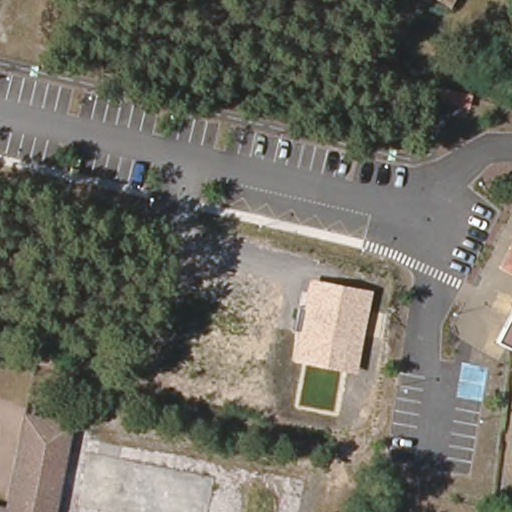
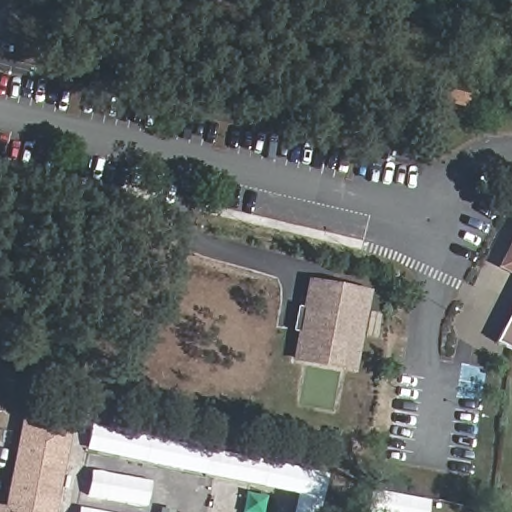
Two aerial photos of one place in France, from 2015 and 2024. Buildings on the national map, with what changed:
unchanged [(437,0),(456,0),(452,7),(437,0)]
unchanged [(512,237),(512,274),(497,268),(512,237)]
unchanged [(294,330),(298,306),(302,307),(308,279),(371,290),(355,372),(292,362),(297,330),(294,330)]
unchanged [(512,307),(512,348),(495,340),(512,307)]
unchanged [(67,435),(50,512),(6,512),(9,498),(21,448),(26,426),(67,435)]

